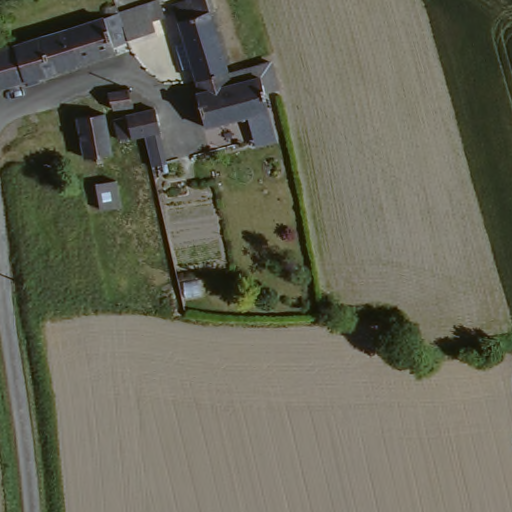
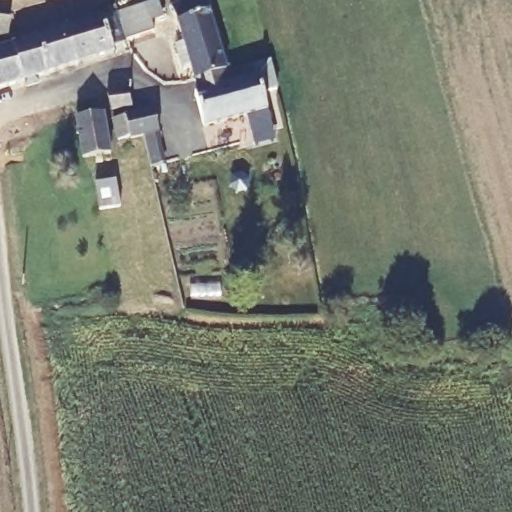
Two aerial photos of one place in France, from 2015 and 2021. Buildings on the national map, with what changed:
unchanged [(101,15),(105,13),(119,8),(136,0),(149,0),(157,21),(158,23),(145,29),(130,35),(116,40),(119,46),(84,60),(53,73),(40,41),(70,29),(101,15)]
unchanged [(178,55),(175,44),(184,42),(174,4),(189,0),(209,0),(212,11),(220,45),(178,55)]
unchanged [(9,46),(0,44),(0,24),(12,26),(9,46)]
unchanged [(54,77),(33,86),(0,98),(0,57),(9,54),(14,51),(18,50),(40,41),(53,73),(54,77)]
unchanged [(220,45),(229,74),(195,82),(191,67),(182,69),(178,55),(220,45)]
unchanged [(232,87),(229,74),(256,68),(269,65),(277,95),(263,98),(267,115),(234,122),(227,88),(232,87)]
unchanged [(202,130),(194,97),(199,96),(195,82),(229,74),(232,87),(227,88),(234,122),(202,130)]
unchanged [(133,108),(111,111),(109,97),(130,93),(131,96),(133,108)]
unchanged [(109,122),(127,119),(126,114),(129,114),(134,113),(153,112),(156,137),(138,138),(129,139),(114,142),(109,122)]
unchanged [(99,119),(102,118),(109,160),(83,164),(75,126),(91,121),(99,119)]
unchanged [(94,185),(113,182),(116,208),(98,211),(96,203),(95,196),(94,190),(94,188),(94,185)]

